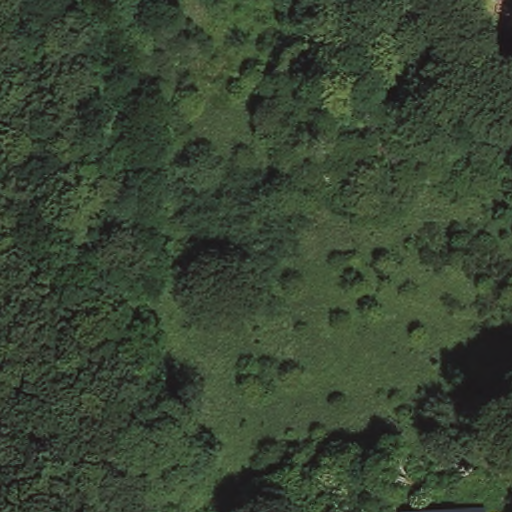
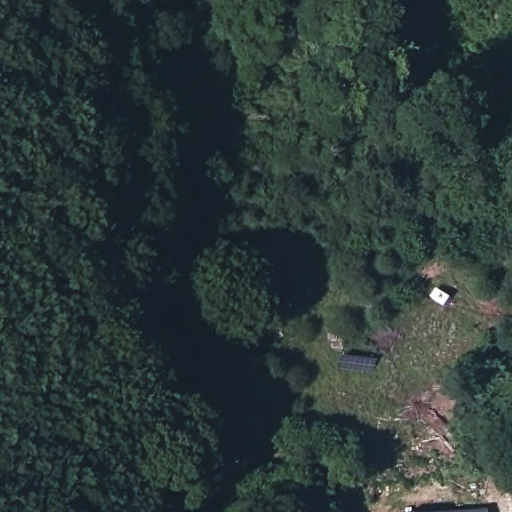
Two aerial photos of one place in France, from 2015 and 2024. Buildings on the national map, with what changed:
unchanged [(486,512),(404,512),(486,502),(486,512)]

